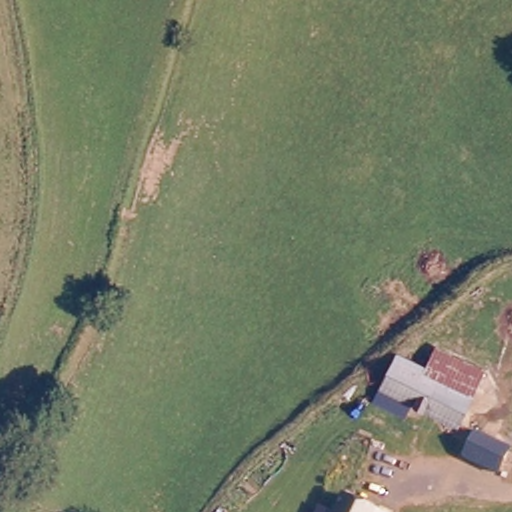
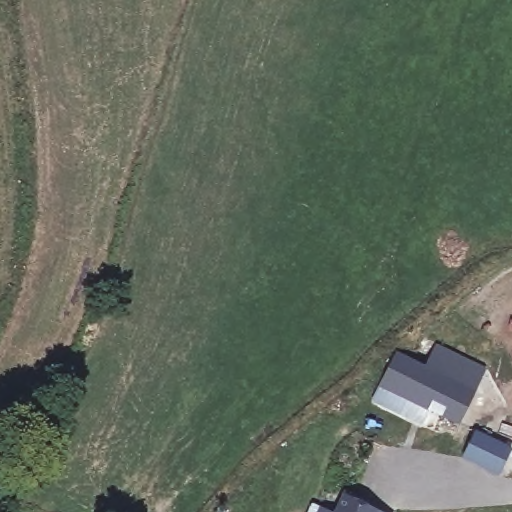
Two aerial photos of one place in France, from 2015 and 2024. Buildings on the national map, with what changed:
unchanged [(387,384),(401,350),(428,365),(435,350),(487,376),(466,422),(387,384)]
unchanged [(486,426),(512,440),(512,456),(505,469),(474,452),(486,426)]
unchanged [(356,494),(387,510),(390,512),(347,512),(356,494)]

